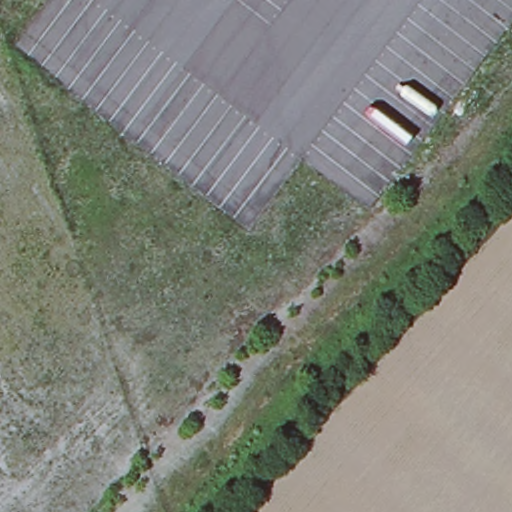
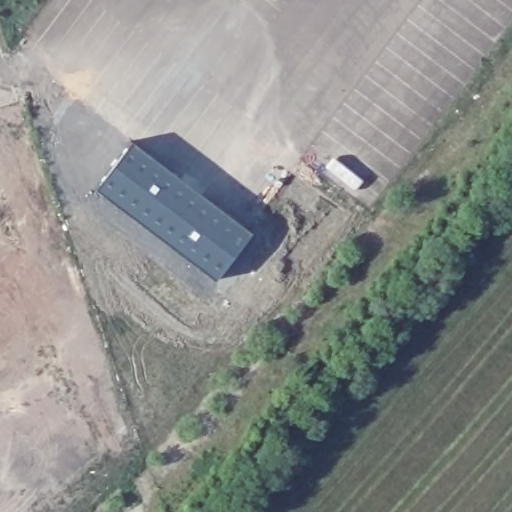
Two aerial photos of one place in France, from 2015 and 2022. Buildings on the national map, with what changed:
new [(252,237),(218,282),(97,191),(132,145),(252,237)]

